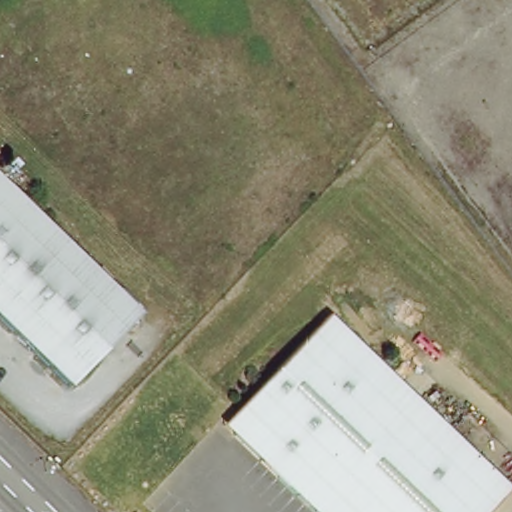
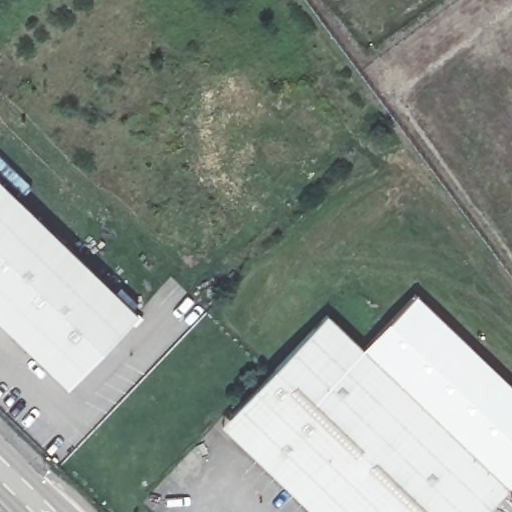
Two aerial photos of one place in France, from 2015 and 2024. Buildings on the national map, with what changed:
unchanged [(144,319),(75,392),(0,321),(0,182),(144,319)]
new [(512,387),(512,486),(368,348),(416,295),(512,387)]
unchanged [(488,512),(319,512),(236,433),(226,423),(236,412),(331,313),(512,486),(512,487),(488,512)]

